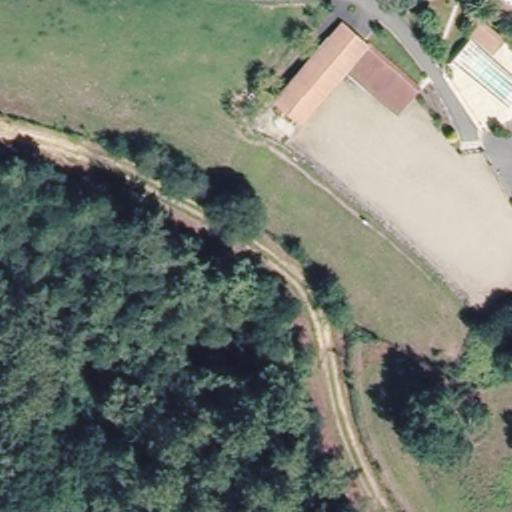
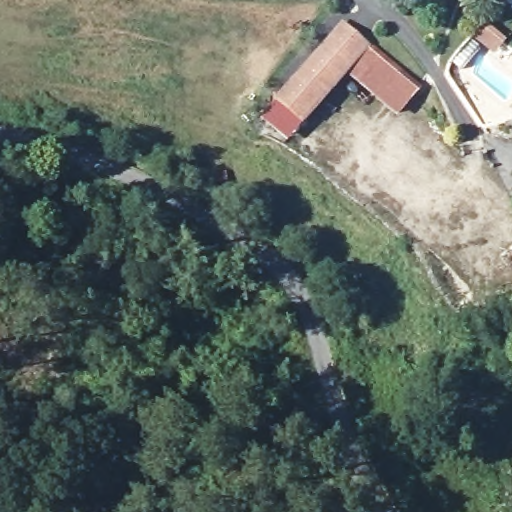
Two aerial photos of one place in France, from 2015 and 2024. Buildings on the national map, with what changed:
unchanged [(278,102),(344,25),(408,80),(419,89),(402,108),(398,112),(347,69),(301,122),(278,102)]

